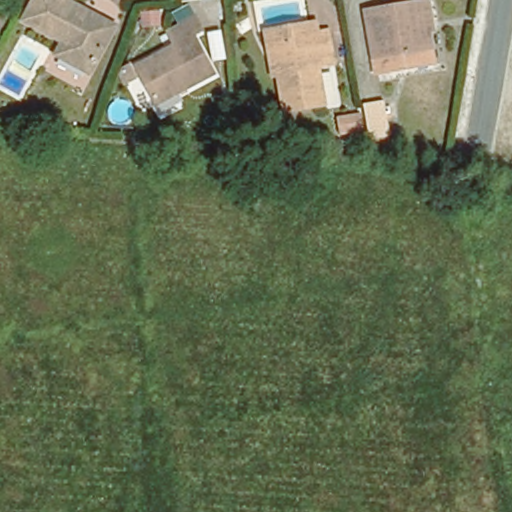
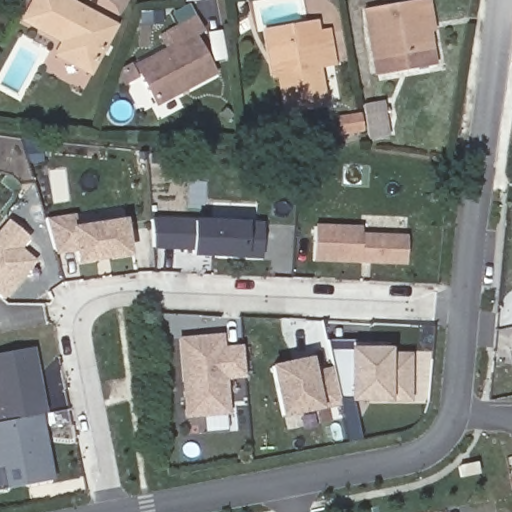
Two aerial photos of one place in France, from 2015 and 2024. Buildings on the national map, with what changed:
unchanged [(41,0),(59,0),(121,29),(99,78),(64,62),(71,48),(28,28),(41,0)]
unchanged [(367,56),(358,7),(398,0),(423,0),(427,27),(421,28),(423,47),(426,61),(425,61),(382,69),(370,71),(367,56)]
unchanged [(161,11),(161,24),(143,25),(142,11),(161,11)]
unchanged [(162,37),(190,23),(197,36),(189,40),(208,78),(150,109),(130,70),(169,50),(162,37)]
unchanged [(327,70),(311,72),(316,110),(278,116),(272,79),(266,80),(260,36),(308,28),(310,38),(321,37),(327,70)]
unchanged [(377,96),(385,137),(367,141),(359,100),(377,96)]
unchanged [(344,124),(361,122),(361,123),(363,136),(363,138),(364,141),(365,149),(347,147),(344,124)]
unchanged [(252,130),(255,147),(245,147),(244,139),(243,134),(242,132),(252,130)]
new [(66,215),(68,226),(117,220),(122,252),(72,259),(71,248),(50,252),(40,219),(66,215)]
new [(194,220),(246,222),(262,223),(260,252),(245,252),(245,259),(192,257),(192,250),(155,248),(152,217),(194,220)]
new [(9,221),(27,237),(19,246),(35,260),(2,299),(0,298),(0,230),(9,221)]
new [(313,260),(315,224),(363,226),(362,234),(407,236),(406,264),(313,260)]
new [(176,338),(217,334),(218,347),(239,345),(241,375),(221,376),(224,412),(182,415),(180,390),(179,381),(176,338)]
new [(407,400),(339,401),(338,396),(338,361),(338,351),(338,341),(386,341),(386,350),(386,357),(407,357),(407,400)]
new [(32,350),(46,413),(39,415),(53,479),(6,488),(1,466),(0,466),(0,355),(32,350)]
new [(303,358),(307,373),(327,368),(333,403),(277,415),(266,366),(303,358)]

